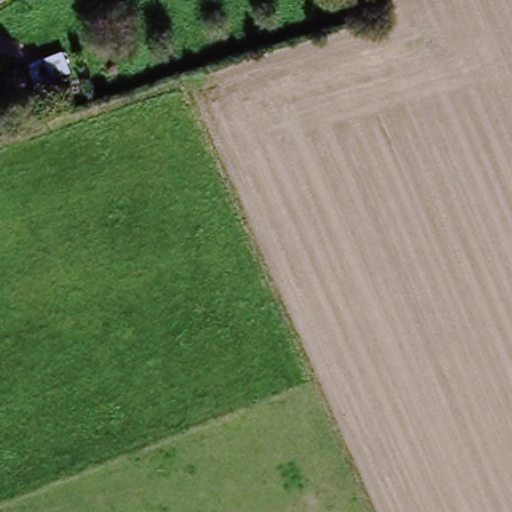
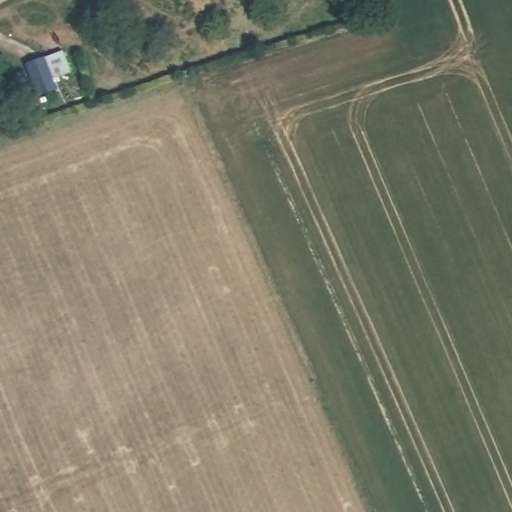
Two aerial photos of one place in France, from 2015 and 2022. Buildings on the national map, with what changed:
[]

